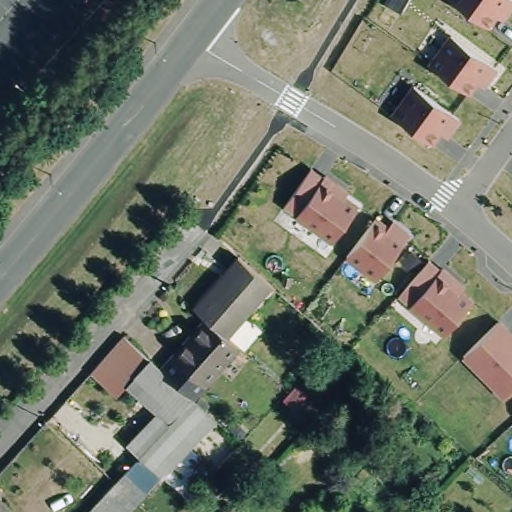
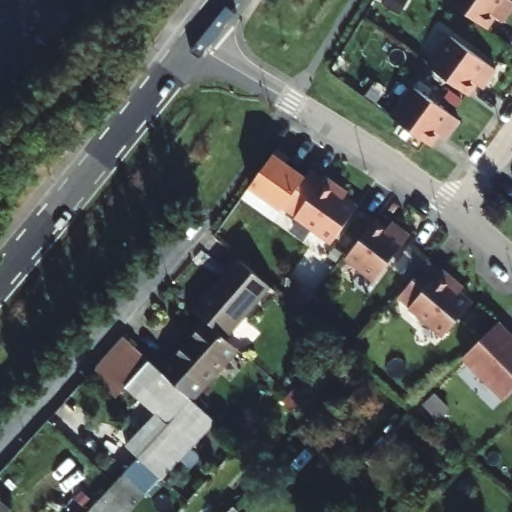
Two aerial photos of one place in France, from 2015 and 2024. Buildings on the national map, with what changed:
unchanged [(489,29),(452,0),(509,0),(512,2),(512,10),(507,20),(497,17),(489,29)]
unchanged [(471,91),(428,65),(446,35),(496,69),(484,89),(477,84),(471,91)]
unchanged [(389,115),(407,89),(457,122),(449,135),(439,131),(432,143),(389,115)]
new [(303,174),(281,207),(279,210),(249,189),(274,152),(303,174)]
unchanged [(353,205),(328,241),(294,218),(281,207),(309,166),(347,187),(342,196),(353,205)]
unchanged [(388,218),(405,230),(399,242),(373,280),(345,260),(373,220),(384,229),(388,218)]
unchanged [(469,300),(443,332),(412,305),(399,294),(426,256),(461,281),(458,290),(469,300)]
unchanged [(274,285),(228,335),(210,319),(197,307),(241,257),(274,285)]
unchanged [(189,393),(163,370),(210,319),(228,335),(236,343),(241,347),(195,398),(189,393)]
unchanged [(504,399),(461,358),(495,323),(512,338),(512,391),(504,399)]
unchanged [(125,336),(163,370),(189,393),(195,398),(218,420),(166,476),(148,495),(125,473),(141,455),(129,445),(159,412),(130,385),(119,395),(93,371),(125,336)]
unchanged [(148,495),(132,512),(89,512),(93,508),(116,483),(125,473),(148,495)]
unchanged [(0,496),(6,502),(0,509),(0,496)]

